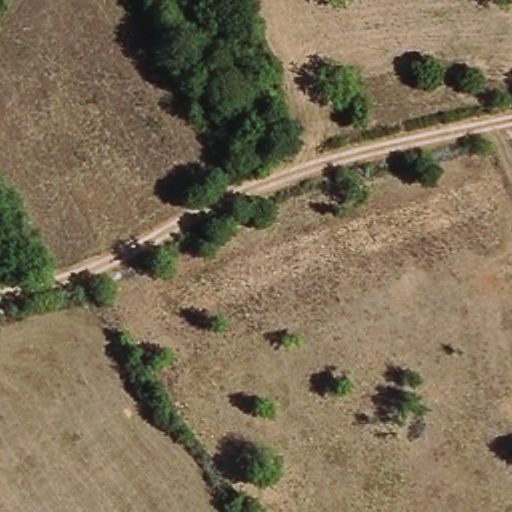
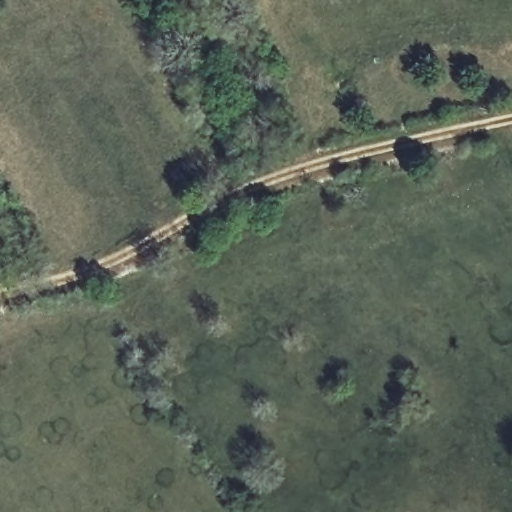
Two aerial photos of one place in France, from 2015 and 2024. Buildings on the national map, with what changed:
unchanged [(167,54),(160,58),(153,47),(160,43),(167,54)]

